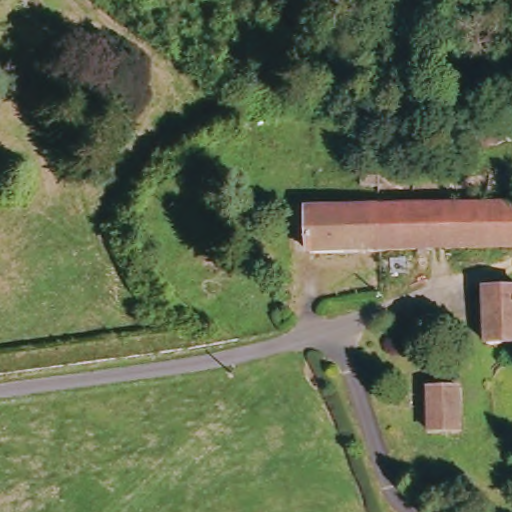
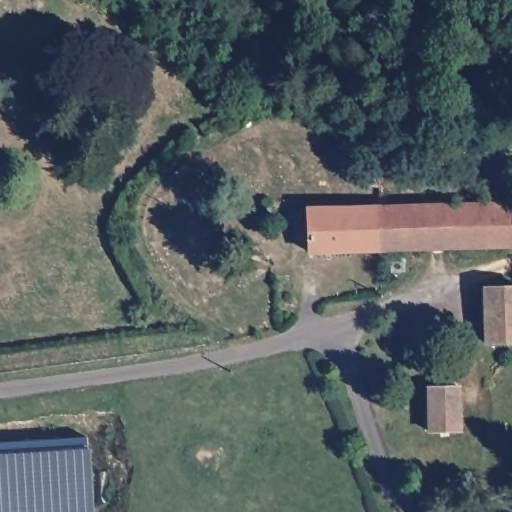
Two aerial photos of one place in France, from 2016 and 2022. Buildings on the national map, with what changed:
unchanged [(383,248),(379,203),(512,199),(512,245),(383,248)]
unchanged [(311,250),(311,237),(299,238),(297,209),(310,208),(310,205),(379,203),(383,248),(311,250)]
unchanged [(488,284),(512,284),(512,339),(487,338),(488,284)]
unchanged [(459,383),(461,429),(434,432),(429,385),(459,383)]
new [(88,436),(88,447),(91,447),(95,512),(0,512),(0,442),(88,436)]

